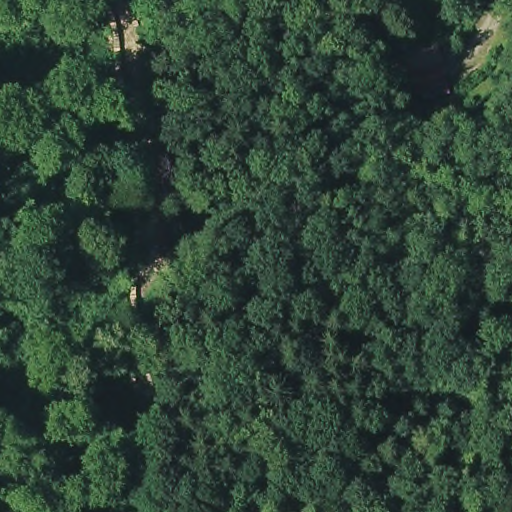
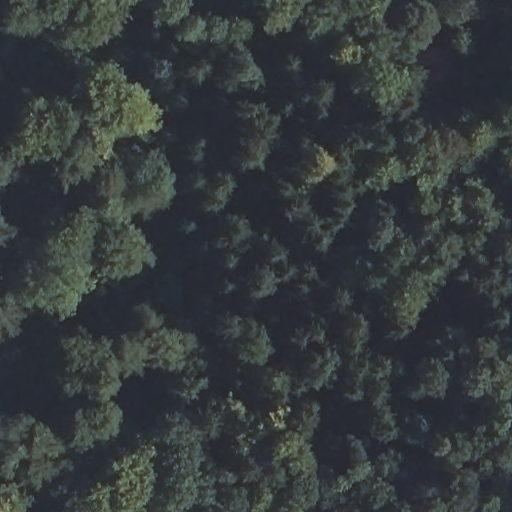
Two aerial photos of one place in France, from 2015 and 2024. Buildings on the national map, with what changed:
unchanged [(453,83),(416,93),(409,72),(446,58),(453,83)]

